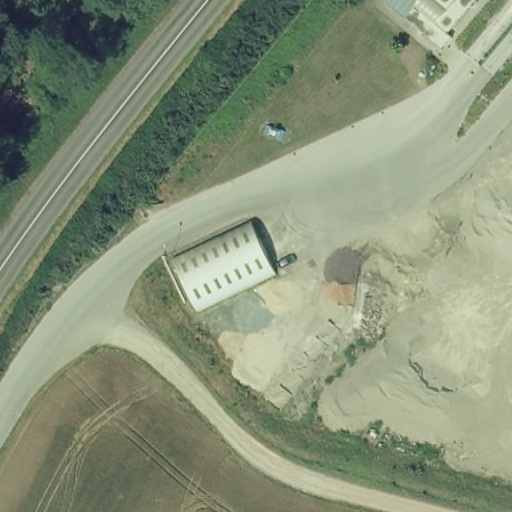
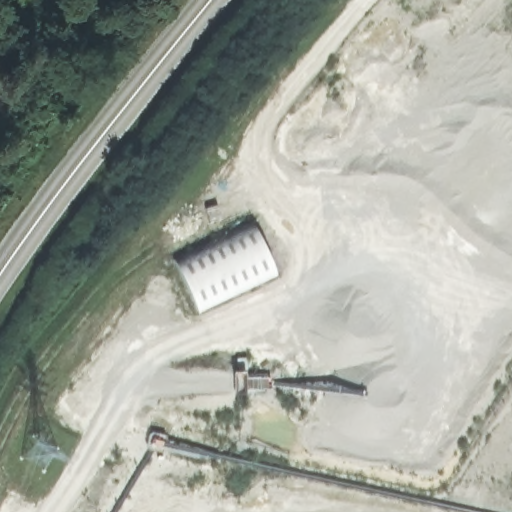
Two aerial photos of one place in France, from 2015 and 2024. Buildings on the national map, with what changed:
unchanged [(474,0),(475,0),(440,46),(390,0),(474,0)]
unchanged [(197,314),(176,261),(258,226),(277,276),(197,314)]

